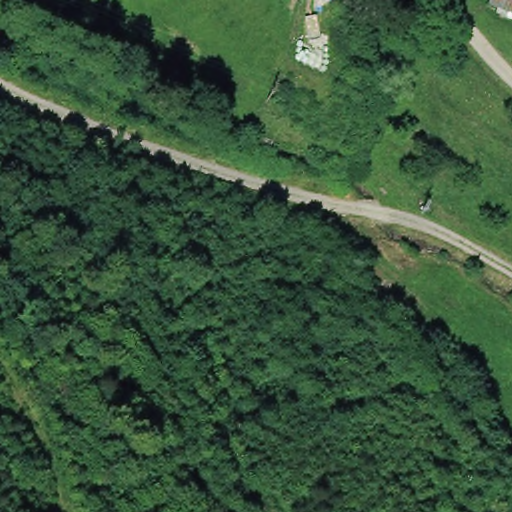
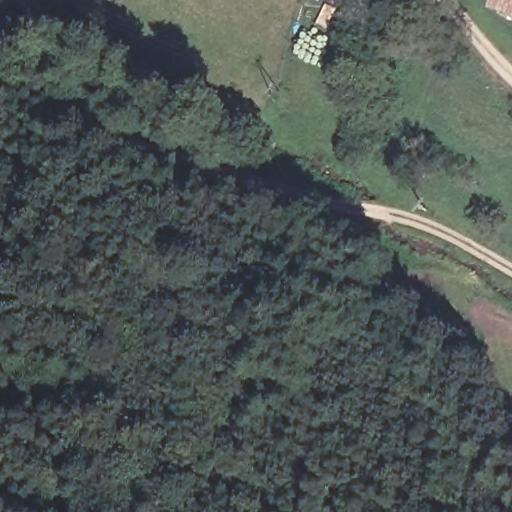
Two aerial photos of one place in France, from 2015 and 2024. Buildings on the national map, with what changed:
unchanged [(496,0),(512,0),(512,9),(495,3),(496,0)]

